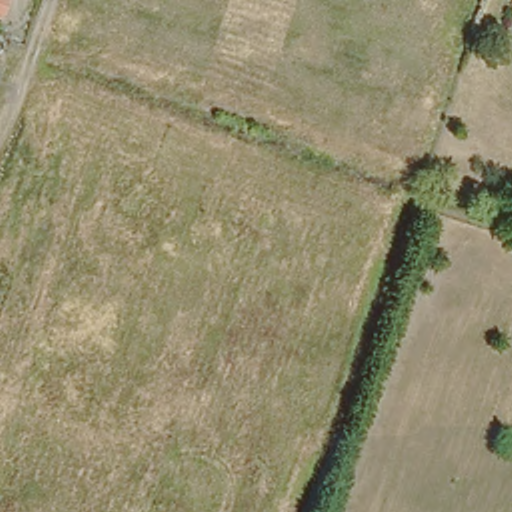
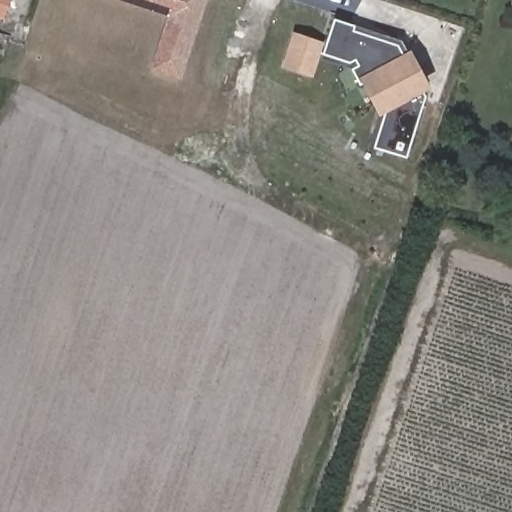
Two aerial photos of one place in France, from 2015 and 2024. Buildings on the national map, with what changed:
unchanged [(0,8),(0,0),(2,0),(0,8)]
new [(181,80),(149,70),(167,17),(114,0),(206,0),(181,80)]
new [(405,67),(408,65),(423,97),(406,156),(372,147),(383,107),(367,80),(357,84),(351,70),(357,68),(353,59),(345,62),(317,50),(307,76),(292,70),(282,66),(293,32),(324,42),(332,18),(352,25),(351,30),(396,44),(405,67)]

